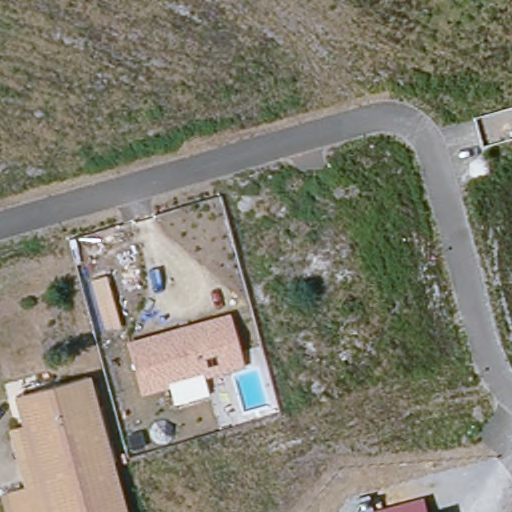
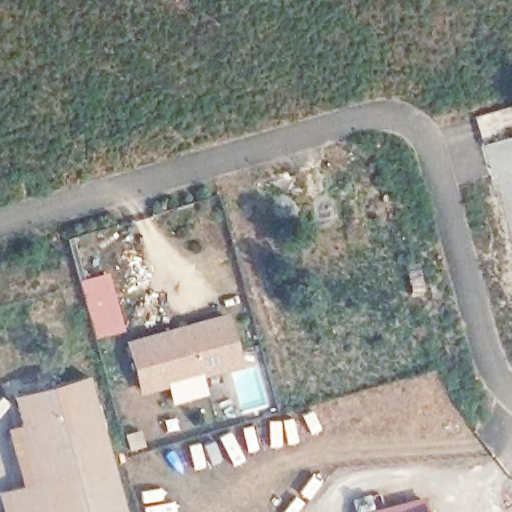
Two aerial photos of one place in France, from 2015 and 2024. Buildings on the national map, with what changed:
new [(80,281),(109,272),(126,330),(97,338),(80,281)]
unchanged [(232,317),(243,363),(146,387),(134,340),(232,317)]
unchanged [(4,489),(37,479),(15,393),(87,371),(126,512),(11,512),(4,489)]
unchanged [(37,479),(25,483),(9,430),(24,425),(37,479)]
unchanged [(424,512),(357,512),(356,507),(353,497),(363,494),(368,493),(372,512),(421,499),(424,512)]

